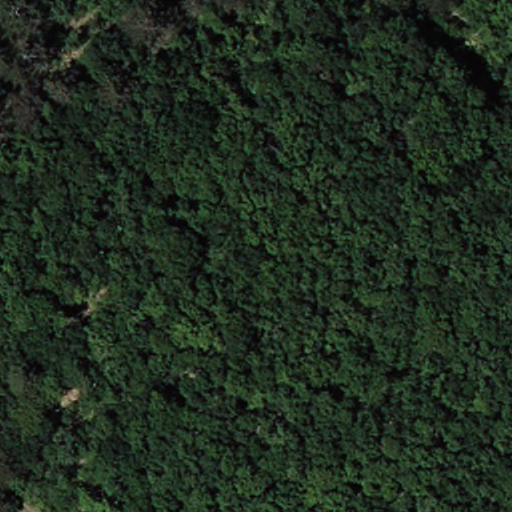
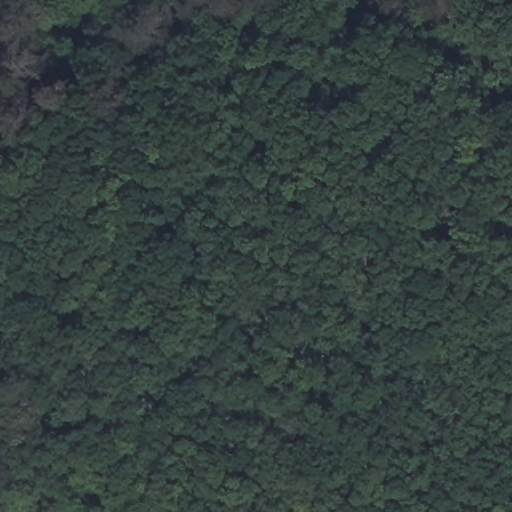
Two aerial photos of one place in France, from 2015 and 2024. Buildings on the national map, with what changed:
[]

